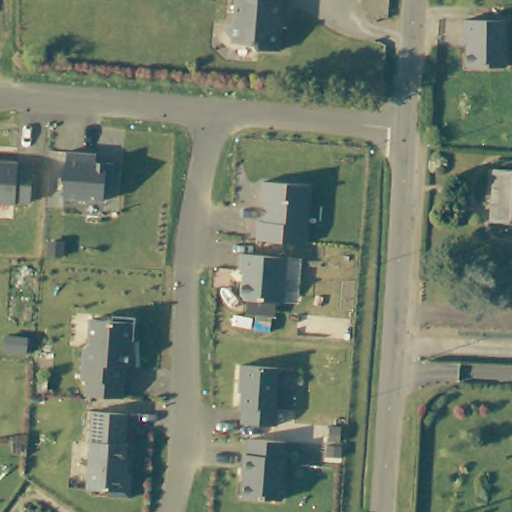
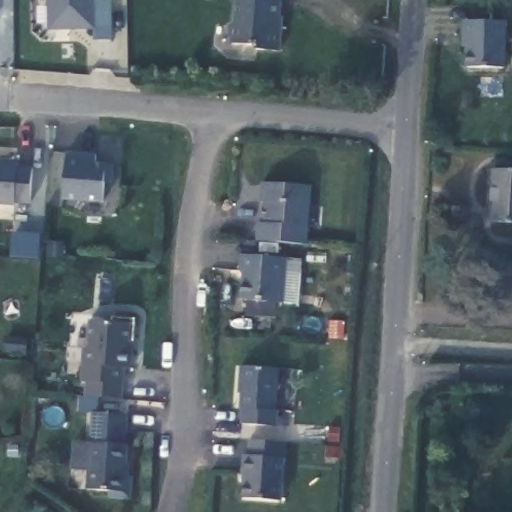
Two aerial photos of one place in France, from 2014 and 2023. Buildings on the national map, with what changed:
new [(49,29),(49,0),(94,0),(95,1),(113,1),(112,40),(95,40),(95,29),(49,29)]
unchanged [(271,23),(275,24),(273,47),(249,46),(246,42),(229,41),(229,37),(224,33),(225,20),(231,17),(231,0),(272,0),(271,23)]
unchanged [(504,70),(467,69),(467,38),(463,38),(464,22),(505,22),(504,70)]
unchanged [(73,152),(102,155),(101,164),(119,165),(118,183),(110,182),(109,202),(69,200),(73,152)]
unchanged [(21,202),(21,205),(0,203),(0,162),(24,164),(24,167),(38,168),(36,203),(21,202)]
unchanged [(512,171),(512,222),(493,221),(496,171),(512,171)]
unchanged [(259,220),(264,220),(266,200),(262,199),(264,180),(312,184),(306,242),(270,239),(257,237),(259,220)]
unchanged [(288,255),(284,300),(245,297),(242,292),(244,271),(240,267),(242,251),(288,255)]
unchanged [(86,383),(81,383),(83,350),(88,346),(90,322),(111,323),(111,318),(135,320),(133,343),(129,342),(128,352),(133,352),(131,369),(124,368),(123,386),(121,401),(84,398),(85,398),(86,383)]
unchanged [(247,412),(245,412),(247,385),(244,384),(245,368),(283,372),(280,413),(282,413),(281,428),(246,426),(247,412)]
unchanged [(128,446),(131,446),(129,477),(135,477),(133,500),(111,498),(111,492),(90,491),(96,413),(130,416),(128,446)]
unchanged [(284,444),(297,445),(292,503),(248,501),(250,477),(247,477),(249,458),(253,458),(254,442),(284,444)]

